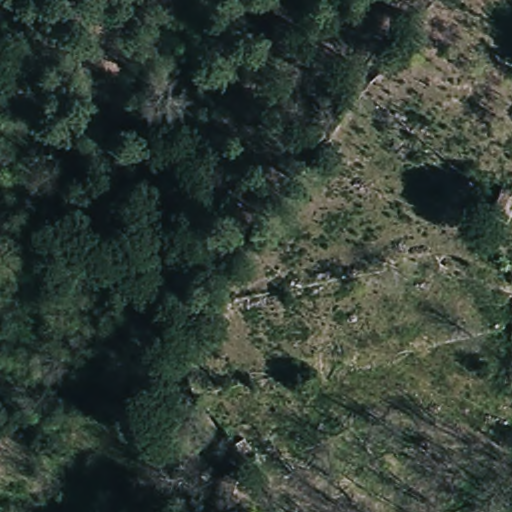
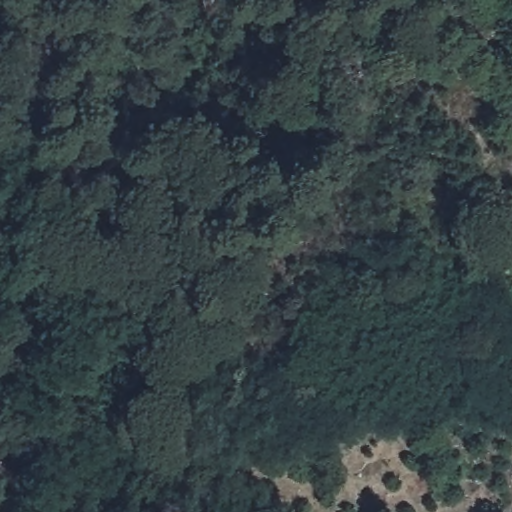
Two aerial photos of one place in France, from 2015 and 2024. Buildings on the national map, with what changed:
unchanged [(512,194),(512,217),(496,207),(505,190),(512,194)]
unchanged [(232,502),(223,481),(241,471),(256,490),(232,502)]

